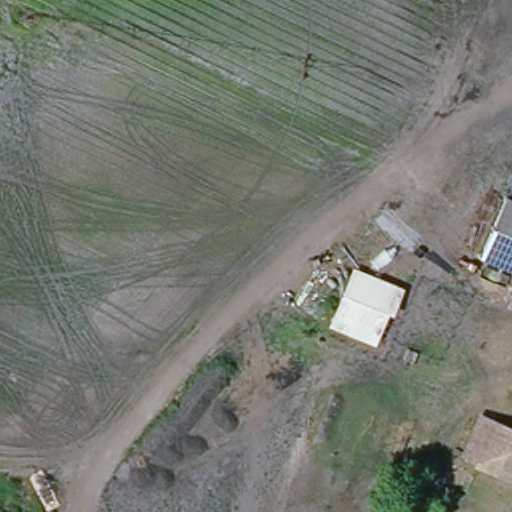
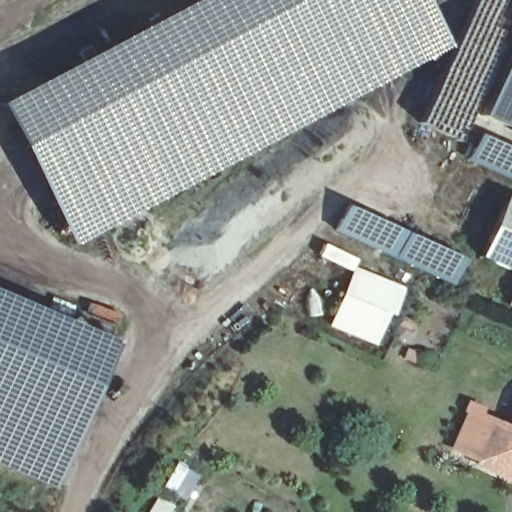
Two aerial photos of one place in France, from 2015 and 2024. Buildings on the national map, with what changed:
new [(0,106),(0,101),(192,0),(421,0),(446,47),(73,244),(0,106)]
new [(480,115),(512,40),(512,129),(480,115)]
new [(479,132),(512,147),(512,181),(466,161),(479,132)]
unchanged [(460,259),(492,187),(512,194),(512,279),(460,259)]
new [(399,229),(392,244),(402,249),(409,234),(459,257),(448,280),(401,258),(402,254),(393,250),(392,254),(338,229),(348,206),(399,229)]
unchanged [(369,339),(339,326),(360,278),(390,290),(369,339)]
new [(51,488),(0,467),(0,292),(114,341),(51,488)]
unchanged [(453,457),(483,389),(512,401),(512,483),(453,457)]

